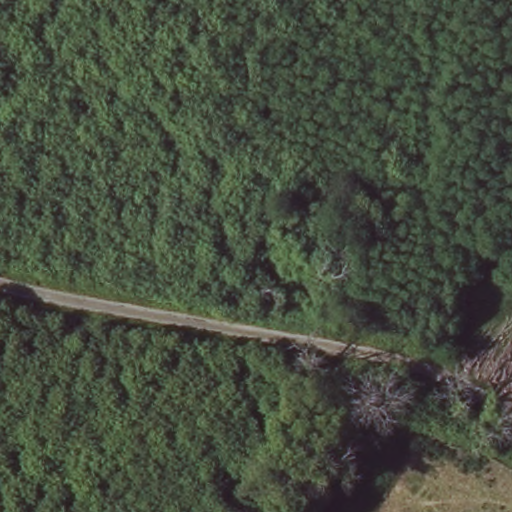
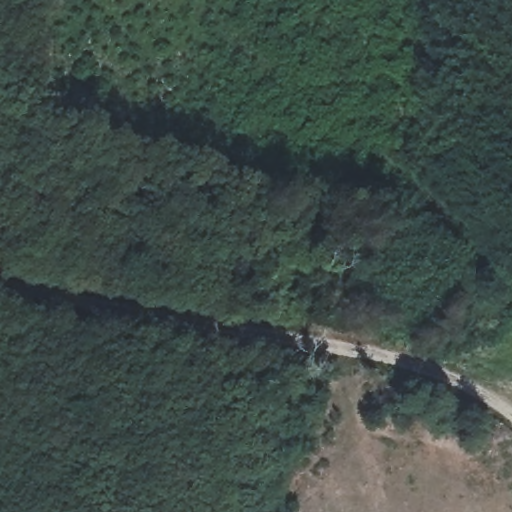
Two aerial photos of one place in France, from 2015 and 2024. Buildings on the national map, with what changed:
[]

